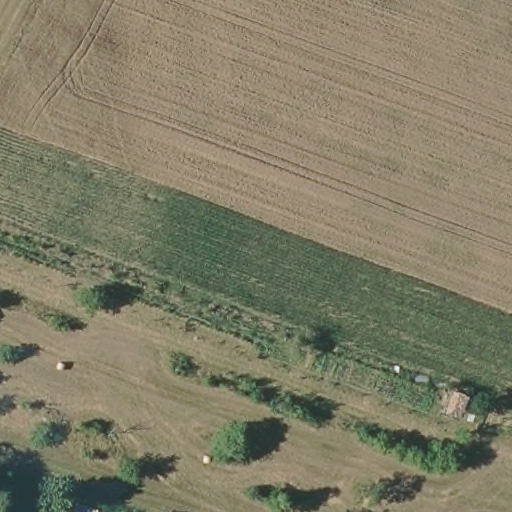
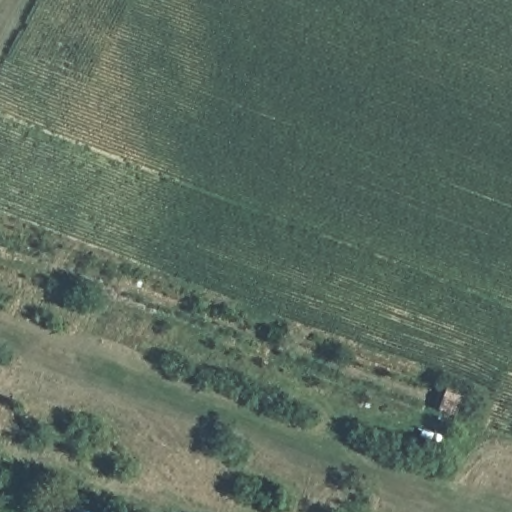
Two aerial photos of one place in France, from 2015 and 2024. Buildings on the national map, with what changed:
unchanged [(85,512),(64,512),(67,505),(85,512)]

